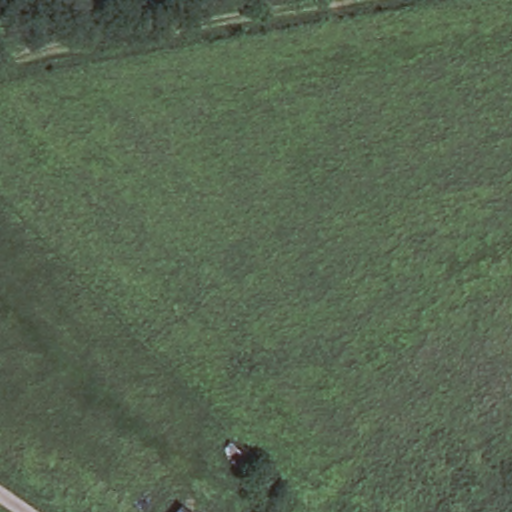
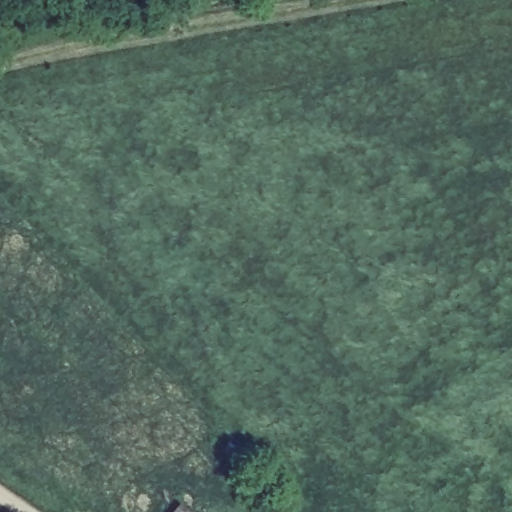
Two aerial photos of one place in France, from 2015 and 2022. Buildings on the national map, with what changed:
unchanged [(194,512),(176,512),(184,503),(194,512)]

